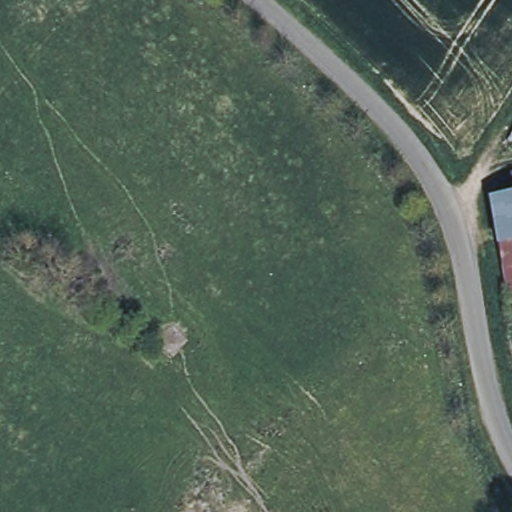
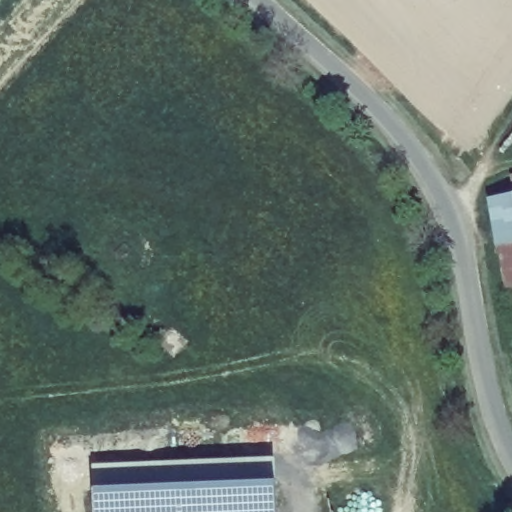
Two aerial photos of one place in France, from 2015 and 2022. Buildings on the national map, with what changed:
unchanged [(491,200),(512,196),(512,300),(508,302),(491,200)]
new [(276,512),(95,512),(94,467),(275,459),(276,512)]

